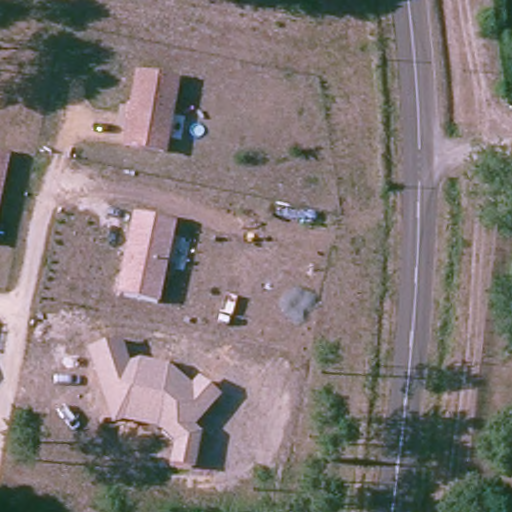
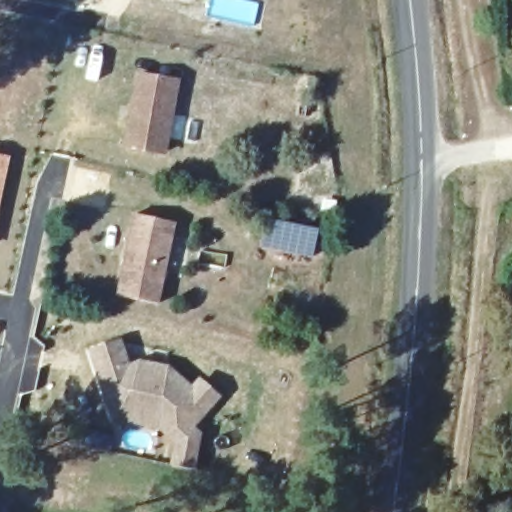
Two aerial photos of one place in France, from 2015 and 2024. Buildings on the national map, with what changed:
unchanged [(138,74),(177,80),(165,152),(126,146),(138,74)]
unchanged [(8,157),(4,180),(0,202),(0,155),(8,157)]
unchanged [(175,221),(158,304),(115,295),(131,214),(175,221)]
new [(268,218),(318,230),(312,257),(262,246),(268,218)]
unchanged [(92,350),(121,341),(129,366),(141,362),(168,367),(193,388),(200,380),(218,395),(191,426),(199,432),(193,466),(174,463),(177,442),(185,433),(156,410),(120,402),(110,405),(92,350)]
unchanged [(177,442),(157,425),(122,418),(114,420),(110,405),(120,402),(156,410),(185,433),(177,442)]

